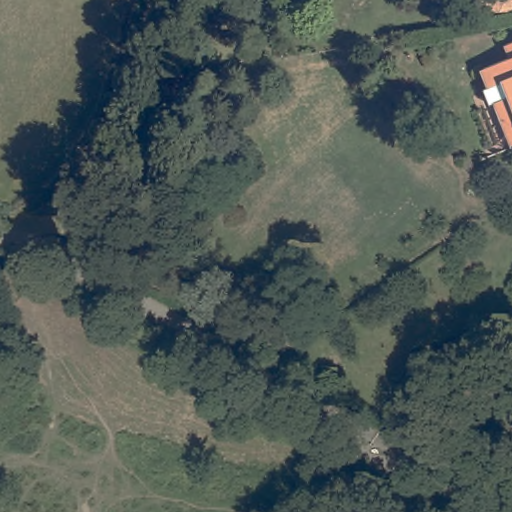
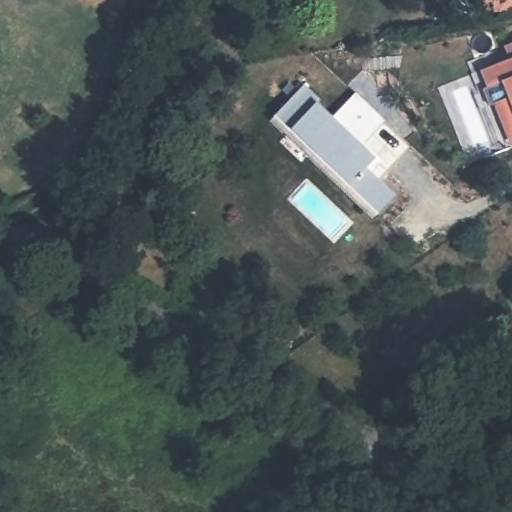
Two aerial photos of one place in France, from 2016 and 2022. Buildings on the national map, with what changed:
unchanged [(511,47),(512,47),(512,50),(511,47)]
unchanged [(492,99),(489,92),(496,89),(488,71),(512,61),(512,152),(507,153),(487,101),(492,99)]
new [(305,82),(320,97),(317,101),(332,115),(356,90),(385,118),(361,143),(375,156),(366,165),(395,193),(378,211),(313,148),(319,142),(298,121),(291,127),(275,112),(305,82)]
new [(275,112),(291,127),(298,121),(319,142),(313,148),(378,211),(373,215),(271,117),(275,112)]

